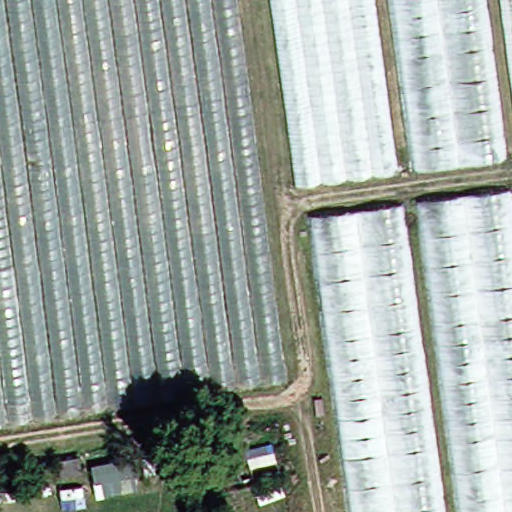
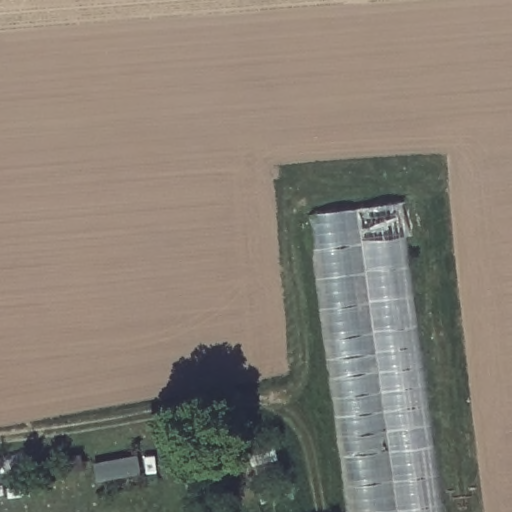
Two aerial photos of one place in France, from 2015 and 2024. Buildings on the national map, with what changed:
demolished [(0,422),(0,0),(222,0),(270,377),(0,422)]
demolished [(264,0),(364,0),(387,166),(288,177),(264,0)]
demolished [(384,0),(472,0),(492,152),(406,165),(384,0)]
demolished [(494,0),(512,0),(512,136),(494,0)]
demolished [(512,275),(512,512),(453,512),(409,200),(501,190),(512,275)]
unchanged [(308,215),(390,204),(432,512),(347,512),(308,215)]

